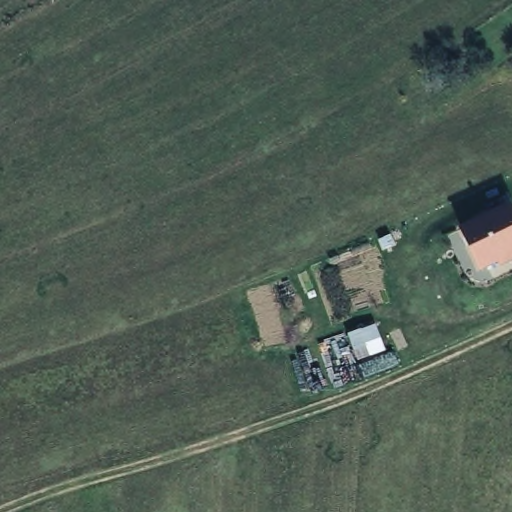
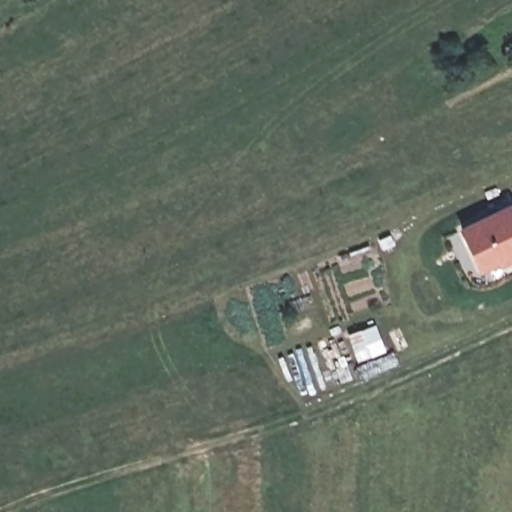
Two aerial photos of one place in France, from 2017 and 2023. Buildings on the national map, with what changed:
unchanged [(512,232),(512,261),(477,278),(454,235),(502,212),(512,232)]

